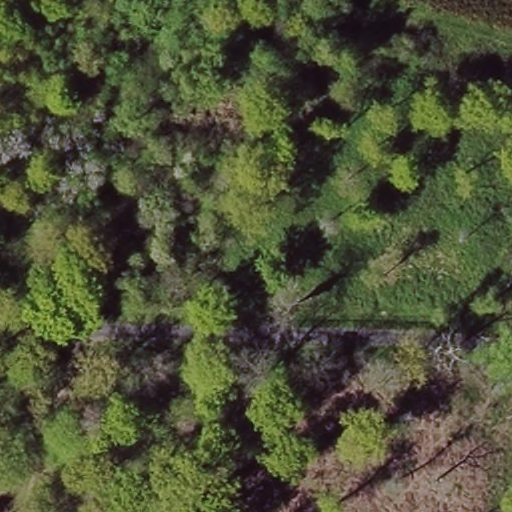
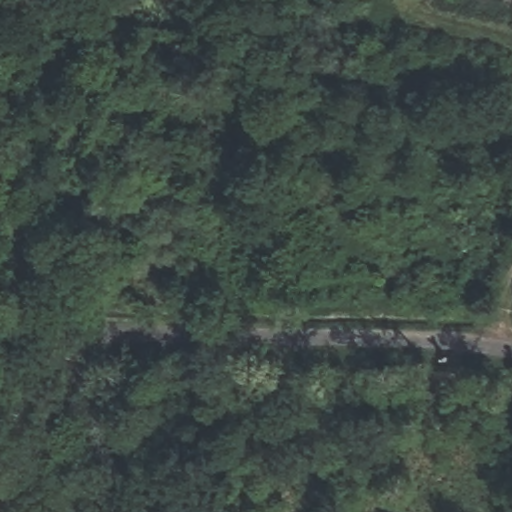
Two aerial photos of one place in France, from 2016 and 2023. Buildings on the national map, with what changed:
unchanged [(375,270),(399,290),(393,298),(369,278),(375,270)]

